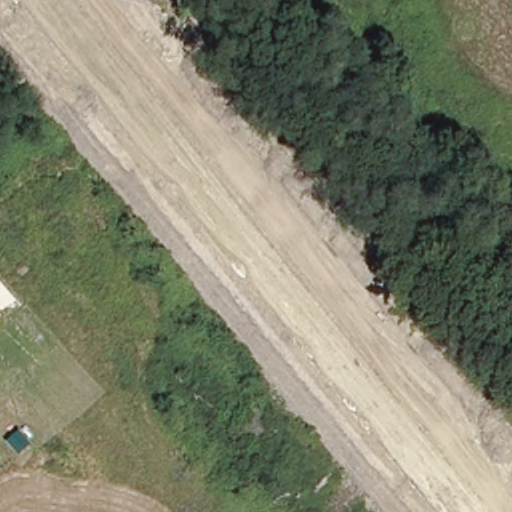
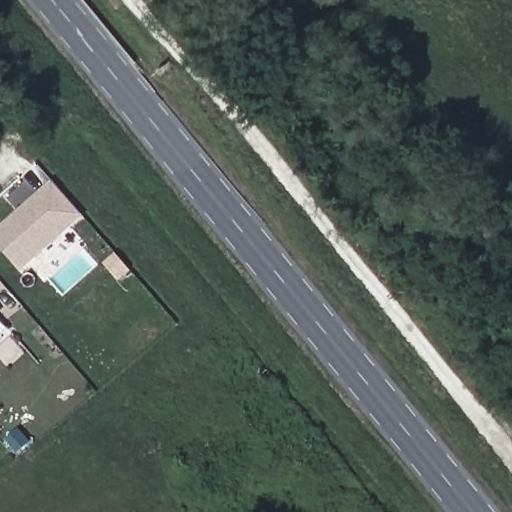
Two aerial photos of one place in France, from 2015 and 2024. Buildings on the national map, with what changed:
new [(80,216),(18,269),(0,248),(0,227),(51,183),(80,216)]

